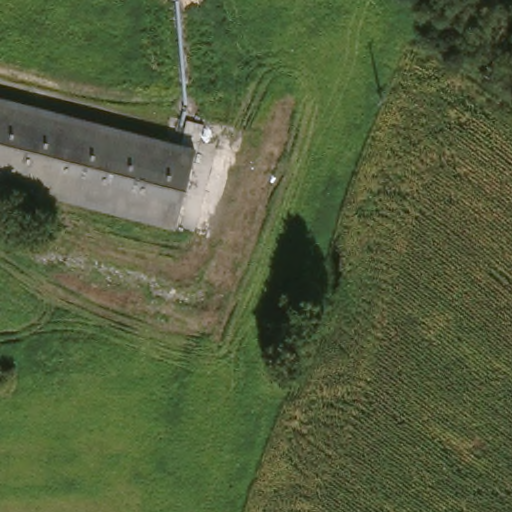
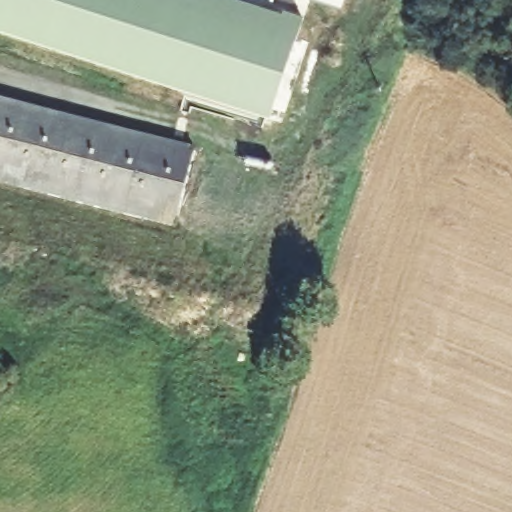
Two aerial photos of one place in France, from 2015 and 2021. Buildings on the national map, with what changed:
new [(282,17),(283,14),(304,21),(270,123),(0,35),(0,0),(230,0),(282,17)]
new [(341,13),(301,0),(346,0),(341,13)]
unchanged [(190,143),(172,220),(0,179),(0,98),(190,143)]

